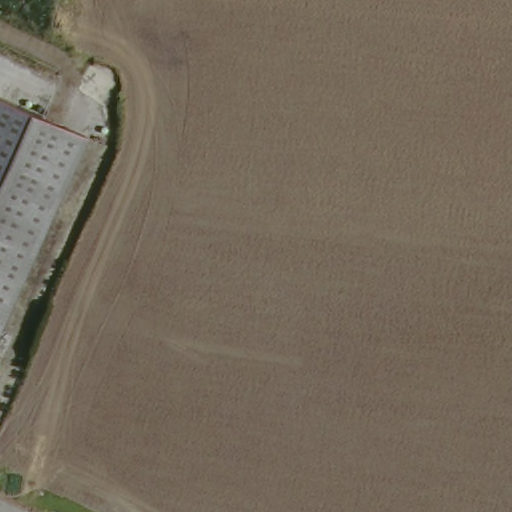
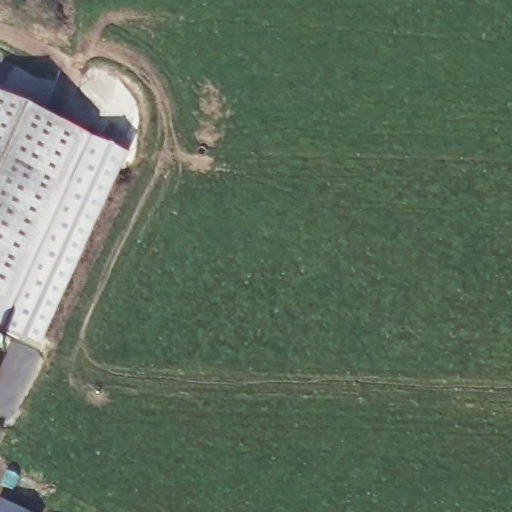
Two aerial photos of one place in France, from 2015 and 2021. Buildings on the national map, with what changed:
unchanged [(86,135),(0,330),(0,95),(86,135)]
new [(86,135),(128,154),(40,349),(0,332),(0,330),(86,135)]
unchanged [(2,369),(0,374),(0,368),(2,369)]
new [(1,501),(24,512),(0,512),(0,502),(1,501)]

